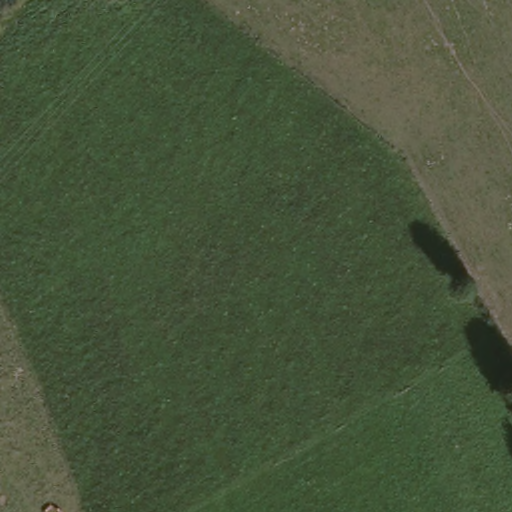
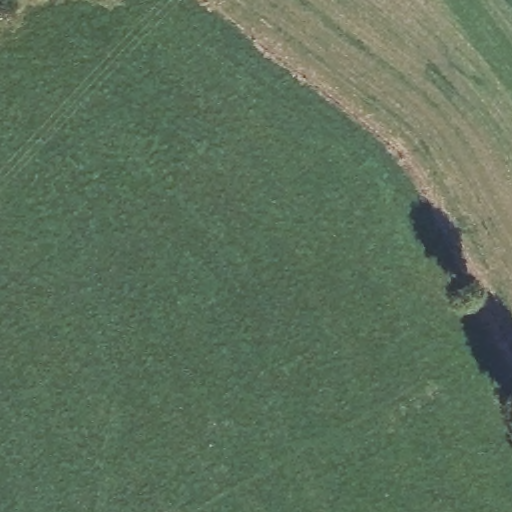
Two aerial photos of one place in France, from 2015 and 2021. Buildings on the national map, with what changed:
[]

